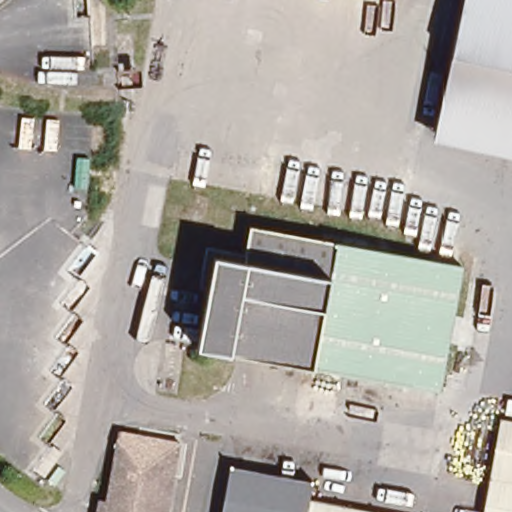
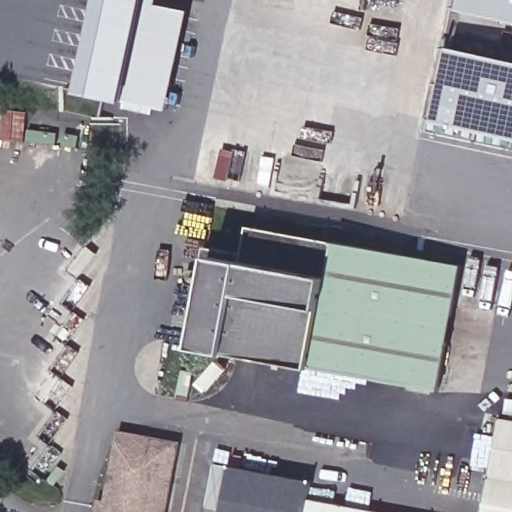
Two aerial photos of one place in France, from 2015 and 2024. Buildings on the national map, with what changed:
new [(121,108),(123,101),(78,92),(98,0),(158,0),(157,5),(184,10),(163,110),(152,108),(151,114),(121,108)]
unchanged [(512,0),(512,159),(433,141),(463,0),(512,0)]
unchanged [(195,356),(202,296),(194,295),(198,251),(238,255),(240,230),(326,237),(327,234),(352,237),(354,220),(380,223),(378,245),(455,255),(438,381),(195,356)]
unchanged [(512,512),(476,512),(497,411),(512,415),(512,512)]
unchanged [(99,500),(106,500),(115,448),(179,460),(170,512),(97,512),(99,500)]
unchanged [(223,471),(308,481),(307,501),(306,512),(219,512),(223,471)]
unchanged [(307,501),(395,512),(306,512),(307,501)]

